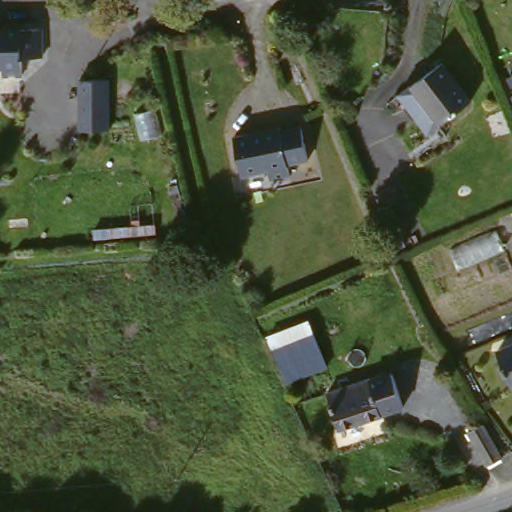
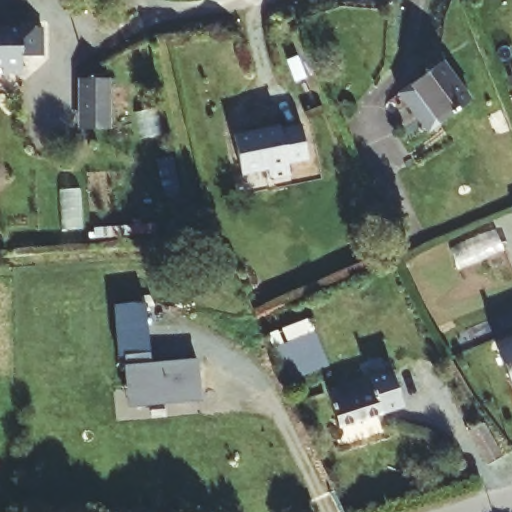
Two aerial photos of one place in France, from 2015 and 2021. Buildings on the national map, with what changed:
unchanged [(36,25),(36,50),(16,50),(16,72),(0,72),(0,25),(36,25)]
unchanged [(408,85),(435,64),(468,104),(441,126),(408,85)]
unchanged [(79,129),(78,78),(113,78),(114,127),(79,129)]
unchanged [(276,122),(277,125),(297,120),(306,155),(286,159),(289,170),(269,175),(266,165),(240,171),(230,133),(276,122)]
unchanged [(512,216),(512,222),(509,217),(512,216)]
unchanged [(314,329),(338,321),(344,335),(318,345),(326,367),(286,381),(267,333),(310,318),(314,329)]
unchanged [(489,357),(512,349),(512,393),(507,395),(489,357)]
new [(203,402),(127,408),(123,356),(150,353),(151,361),(197,358),(203,402)]
unchanged [(328,395),(373,384),(374,386),(398,378),(408,411),(386,416),(338,426),(328,395)]
unchanged [(477,465),(458,438),(469,429),(489,455),(477,465)]

